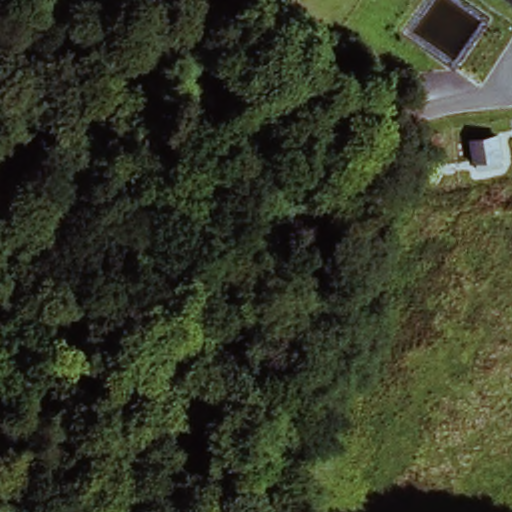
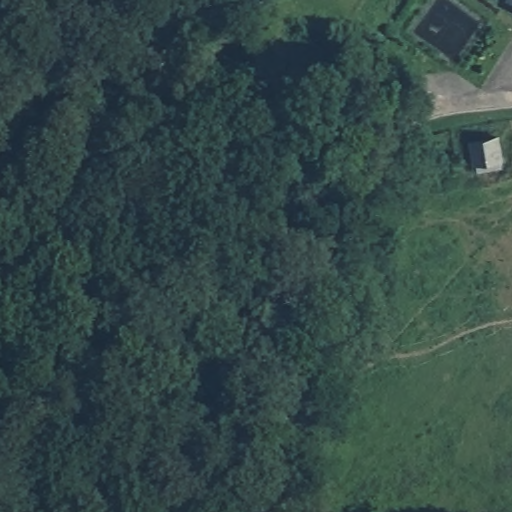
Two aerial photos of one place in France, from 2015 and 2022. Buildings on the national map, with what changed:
unchanged [(507,2),(508,0),(512,0),(512,5),(507,2)]
unchanged [(505,160),(479,164),(474,144),(500,137),(505,160)]

